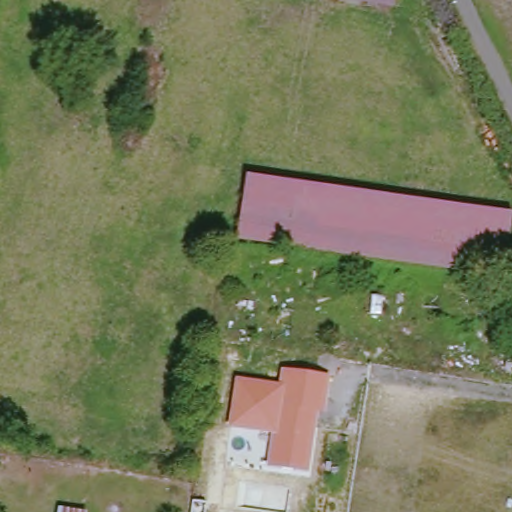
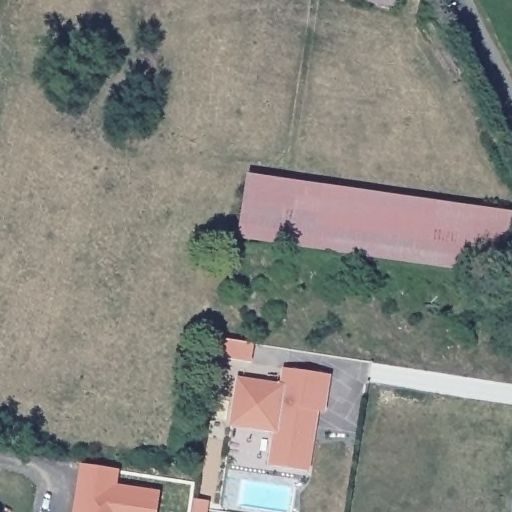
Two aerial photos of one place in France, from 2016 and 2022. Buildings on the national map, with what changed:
unchanged [(344,0),(398,0),(397,10),(344,0)]
unchanged [(512,210),(502,276),(237,238),(246,174),(512,210)]
unchanged [(280,387),(283,369),(329,378),(324,419),(317,416),(309,472),(270,467),(273,434),(227,425),(235,378),(280,387)]
new [(80,464),(118,471),(117,485),(158,492),(156,512),(73,512),(80,464)]
demolished [(80,512),(64,512),(65,509),(80,512)]

